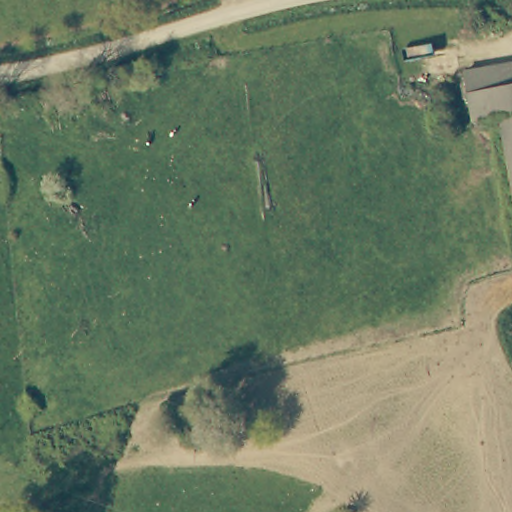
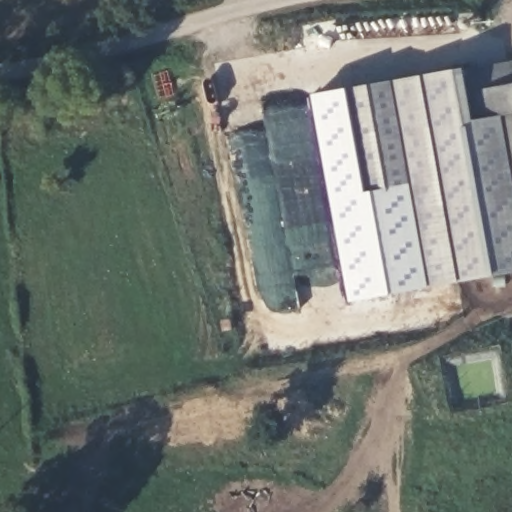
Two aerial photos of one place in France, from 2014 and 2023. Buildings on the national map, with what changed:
unchanged [(502,122),(475,125),(467,71),(512,65),(512,184),(502,122)]
new [(426,288),(408,192),(362,199),(342,89),(467,71),(475,125),(502,122),(512,184),(512,273),(426,288)]

